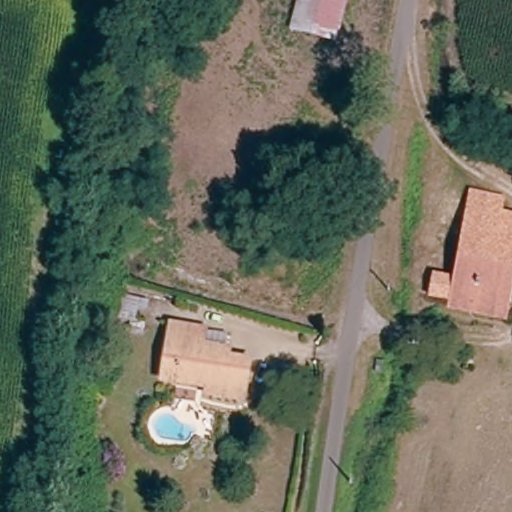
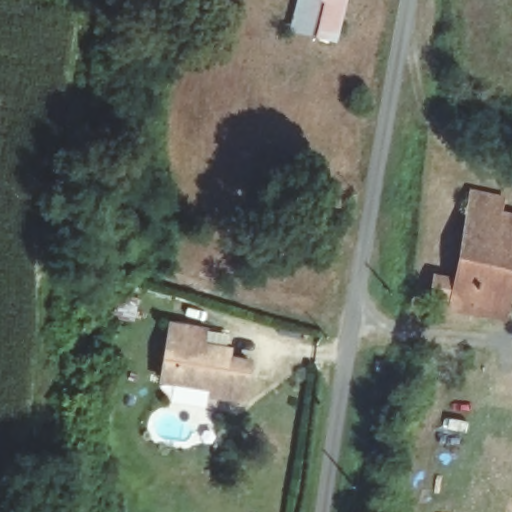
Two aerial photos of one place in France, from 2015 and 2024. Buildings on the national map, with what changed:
unchanged [(335,42),(290,30),(297,0),(347,0),(335,42)]
unchanged [(503,198),(501,212),(512,215),(512,280),(504,319),(450,308),(450,301),(430,297),(434,274),(455,279),(472,192),(503,198)]
unchanged [(141,298),(137,319),(120,317),(123,296),(141,298)]
unchanged [(164,363),(171,320),(204,325),(227,329),(225,345),(227,346),(226,352),(249,356),(242,396),(206,390),(207,382),(173,376),(162,375),(164,363)]

